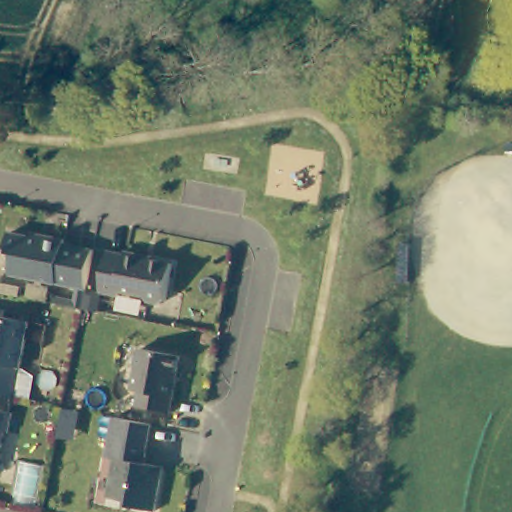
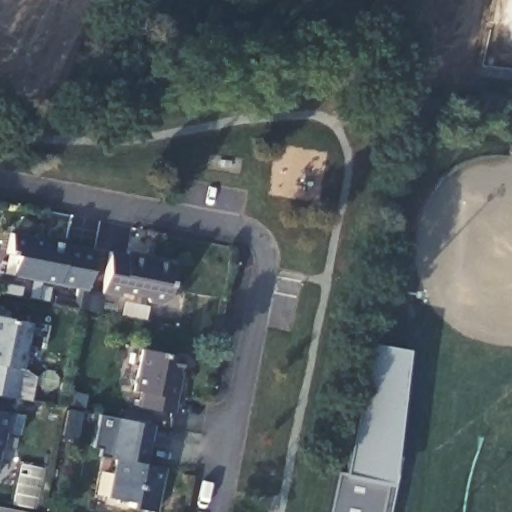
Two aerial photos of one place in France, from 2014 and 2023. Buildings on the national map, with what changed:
unchanged [(58,299),(77,302),(80,290),(15,278),(20,256),(12,255),(15,237),(49,243),(50,239),(70,243),(69,248),(99,254),(88,314),(76,311),(57,308),(58,299)]
unchanged [(166,308),(154,306),(146,299),(124,295),(124,299),(106,296),(114,256),(130,259),(131,256),(153,260),(152,264),(176,269),(171,302),(166,308)]
unchanged [(12,315),(11,321),(34,326),(19,402),(0,398),(0,312),(12,315)]
new [(390,456),(382,512),(328,512),(336,471),(342,472),(366,343),(405,350),(390,456)]
unchanged [(181,386),(176,417),(141,411),(144,396),(137,395),(144,352),(184,361),(179,386),(181,386)]
unchanged [(9,434),(7,454),(2,453),(0,480),(0,412),(19,415),(17,435),(9,434)]
unchanged [(154,425),(150,455),(143,454),(142,462),(165,465),(158,509),(129,505),(130,498),(111,495),(117,456),(110,455),(116,417),(154,425)]

